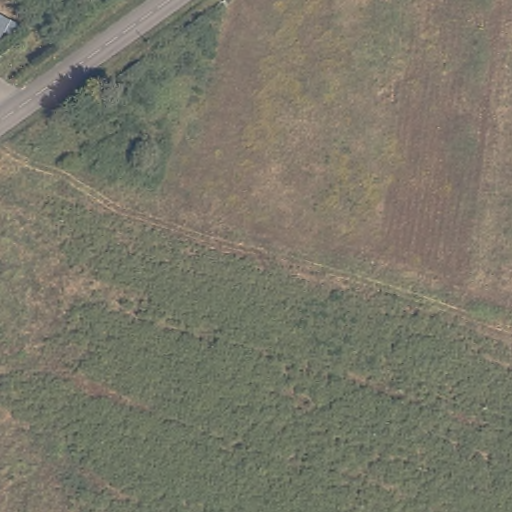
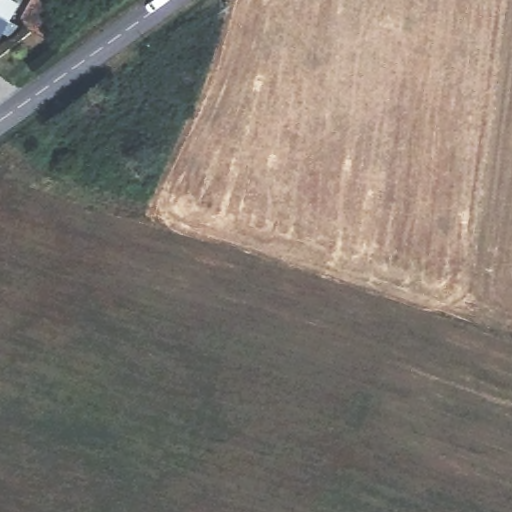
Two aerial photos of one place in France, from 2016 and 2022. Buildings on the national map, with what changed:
unchanged [(20,25),(13,37),(4,32),(0,40),(0,14),(11,20),(20,25)]

